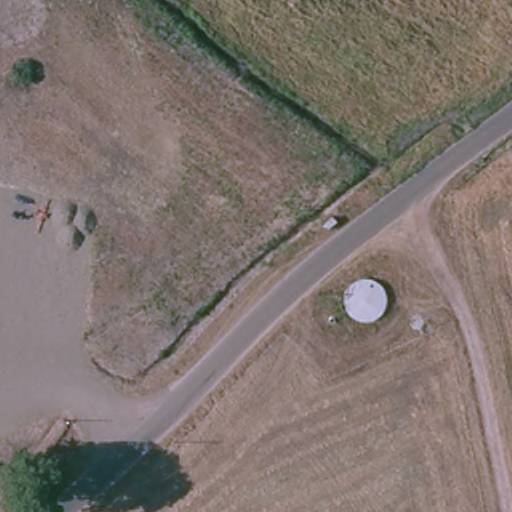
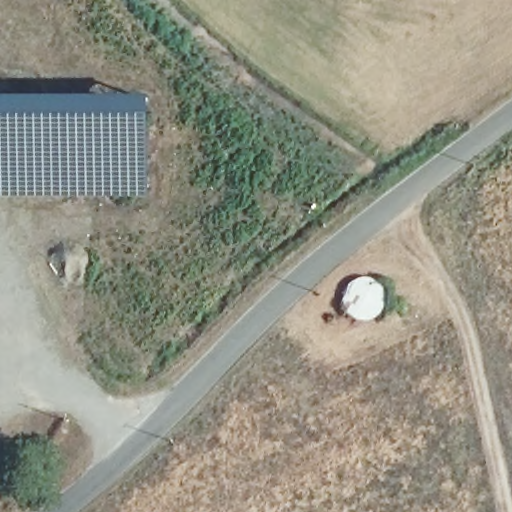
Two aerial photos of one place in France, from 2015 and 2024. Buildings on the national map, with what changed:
new [(0,99),(149,99),(148,196),(0,196),(0,99)]

